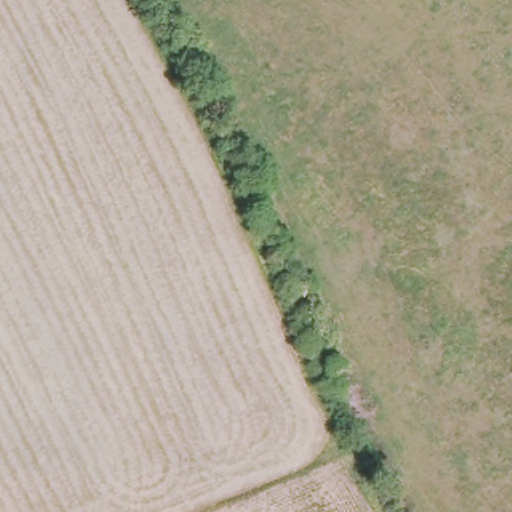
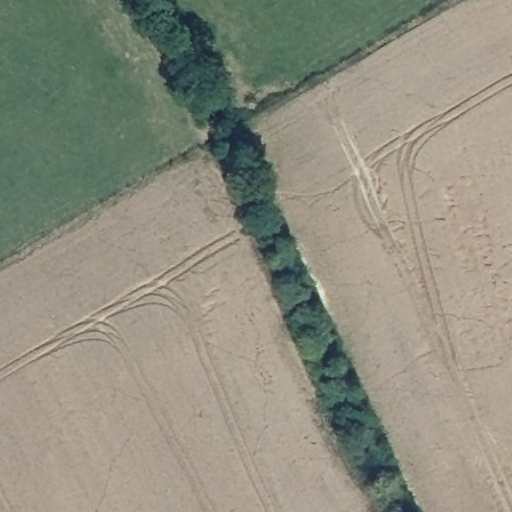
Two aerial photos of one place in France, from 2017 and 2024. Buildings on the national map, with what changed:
[]

